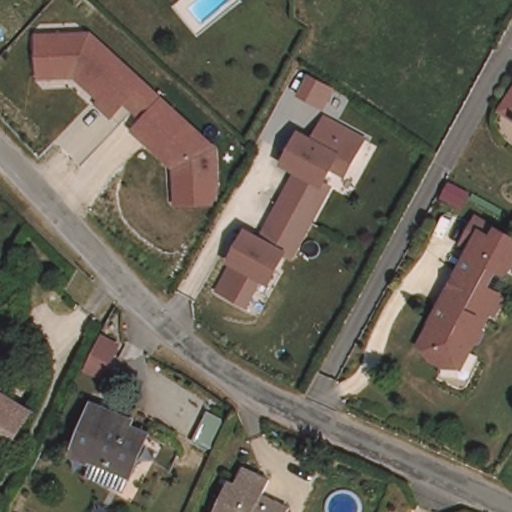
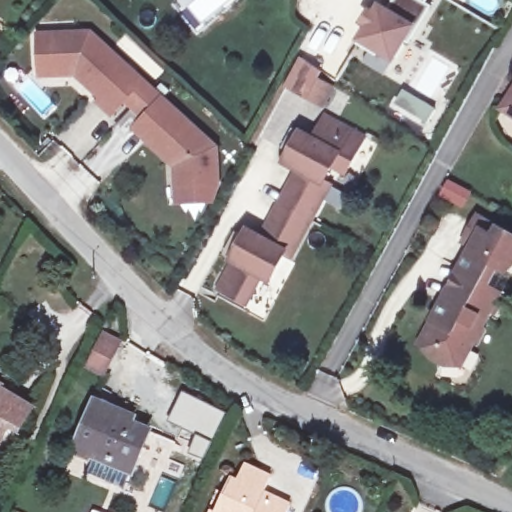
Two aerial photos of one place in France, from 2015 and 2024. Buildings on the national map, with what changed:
new [(382,4),(385,0),(428,0),(426,3),(432,6),(410,42),(407,41),(395,63),(386,76),(363,63),(370,49),(356,40),(365,26),(360,24),(370,7),(373,10),(378,1),(382,4)]
unchanged [(93,30),(221,148),(220,206),(175,205),(175,169),(133,130),(142,120),(125,106),(113,118),(96,104),(97,98),(75,78),(40,80),(36,33),(93,30)]
unchanged [(337,89),(325,110),(298,95),(310,74),(337,89)]
unchanged [(512,90),(512,109),(503,104),(512,90)]
unchanged [(302,131),(316,138),(330,114),(368,135),(354,161),(344,156),(327,182),(324,187),(294,171),(282,165),(302,131)]
unchanged [(324,187),(327,182),(333,186),(293,260),(282,255),(285,249),(260,236),(294,171),(324,187)]
unchanged [(437,298),(451,270),(462,250),(460,247),(459,246),(457,243),(454,240),(462,226),(467,217),(489,229),(512,241),(512,255),(505,257),(503,256),(495,271),(482,264),(477,271),(472,282),(490,291),(472,326),(473,332),(469,341),(463,343),(450,366),(440,361),(440,363),(433,365),(423,360),(421,353),(422,351),(411,345),(423,321),(427,314),(435,301),(437,298)]
unchanged [(260,236),(285,249),(282,255),(269,281),(259,277),(242,307),(217,293),(237,258),(232,255),(247,230),(260,236)]
unchanged [(102,334),(120,343),(117,347),(102,375),(86,366),(100,338),(102,334)]
unchanged [(32,408),(14,438),(4,432),(0,438),(0,389),(32,408)]
unchanged [(87,461),(69,453),(90,403),(107,410),(110,400),(122,405),(118,416),(127,419),(125,424),(143,432),(127,469),(125,476),(87,461)]
unchanged [(213,509),(230,474),(236,477),(243,461),(270,473),(263,490),(268,492),(290,502),(286,512),(207,512),(210,507),(213,509)]

